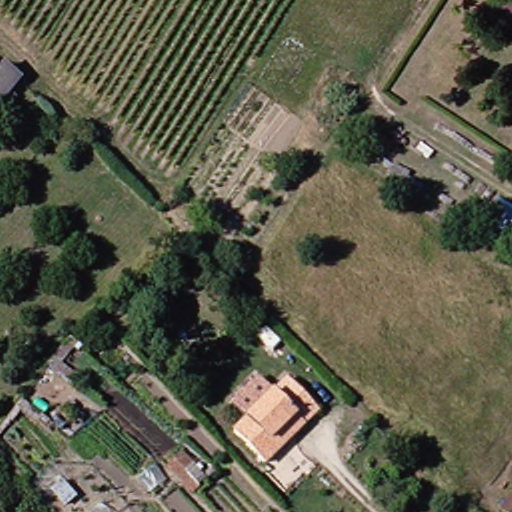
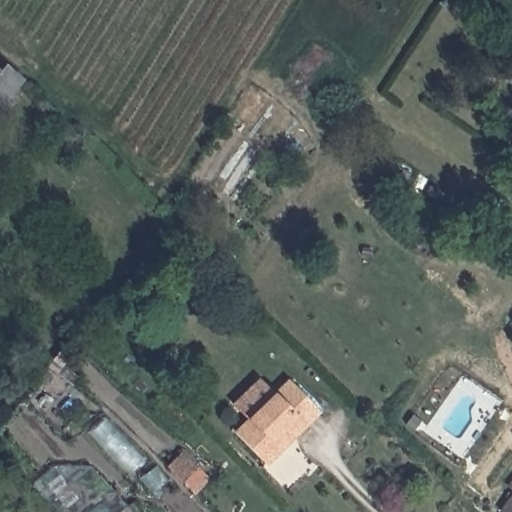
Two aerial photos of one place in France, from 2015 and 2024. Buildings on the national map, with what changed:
unchanged [(490,2),(491,0),(512,0),(512,22),(490,2)]
unchanged [(0,64),(15,78),(0,96),(0,64)]
unchanged [(479,217),(492,197),(512,210),(512,238),(479,217)]
unchanged [(239,419),(225,402),(252,379),(266,395),(282,382),(311,415),(254,464),(225,431),(239,419)]
unchanged [(203,479),(190,491),(169,470),(177,462),(172,457),(177,452),(203,479)]
unchanged [(496,476),(503,480),(497,488),(491,483),(496,476)]
unchanged [(500,512),(512,493),(512,512),(500,512)]

